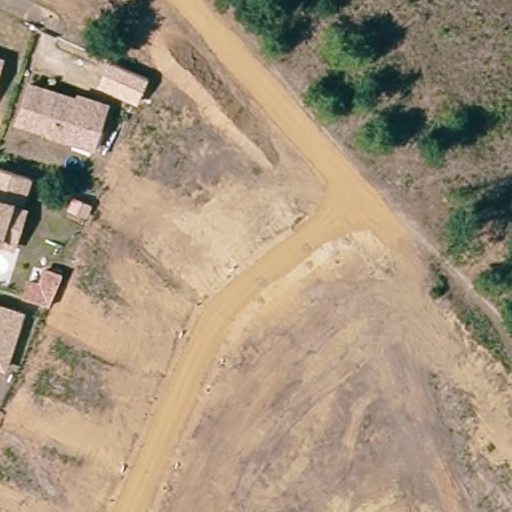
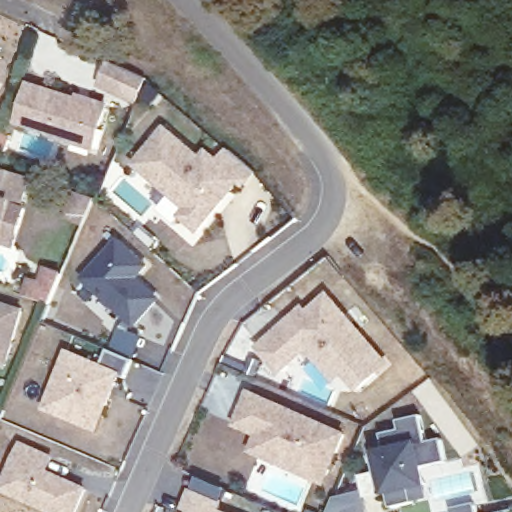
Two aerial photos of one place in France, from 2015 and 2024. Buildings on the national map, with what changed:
unchanged [(0,74),(0,61),(4,62),(0,74)]
new [(140,106),(125,99),(102,89),(113,66),(135,76),(150,83),(140,106)]
unchanged [(71,140),(47,132),(47,130),(15,119),(27,82),(85,101),(86,97),(103,103),(94,132),(90,146),(71,140)]
new [(176,215),(182,210),(134,165),(166,126),(200,155),(207,149),(219,158),(229,149),(256,174),(239,194),(234,189),(196,234),(176,215)]
unchanged [(16,243),(0,237),(0,168),(34,177),(16,243)]
new [(135,330),(80,278),(120,237),(150,267),(140,277),(161,298),(135,330)]
new [(41,287),(45,272),(63,278),(57,292),(50,307),(25,300),(30,283),(41,287)]
new [(306,309),(328,292),(391,365),(356,393),(343,376),(332,386),(306,352),(277,377),(253,346),(302,305),(306,309)]
unchanged [(7,368),(0,366),(0,300),(24,308),(7,368)]
new [(39,410),(65,348),(102,363),(107,348),(132,360),(125,378),(119,376),(97,432),(39,410)]
unchanged [(268,462),(246,452),(254,437),(245,432),(231,427),(237,412),(245,395),(340,437),(322,477),(318,485),(268,462)]
new [(409,488),(412,503),(389,508),(385,494),(378,495),(370,456),(385,452),(381,435),(400,431),(398,422),(421,417),(427,443),(441,440),(447,463),(421,468),(425,485),(409,488)]
new [(0,486),(20,442),(55,457),(50,470),(87,487),(76,512),(45,512),(0,492),(0,486)]
new [(180,510),(190,490),(224,503),(221,511),(225,512),(187,512),(180,510)]
new [(332,498),(362,492),(368,512),(327,512),(332,498)]

